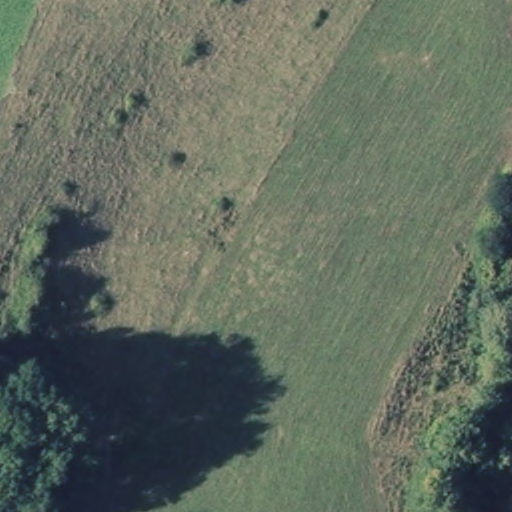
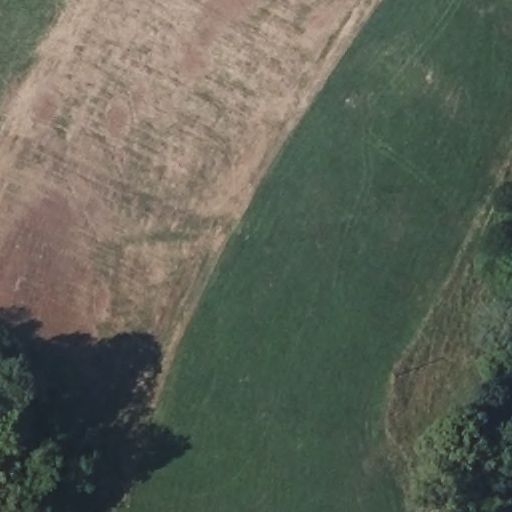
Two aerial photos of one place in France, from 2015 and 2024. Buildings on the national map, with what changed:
[]

